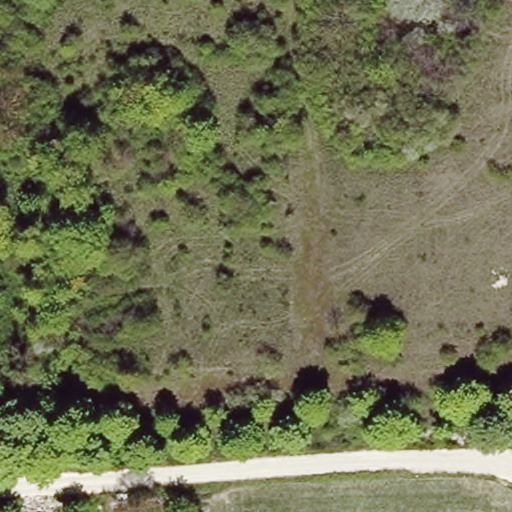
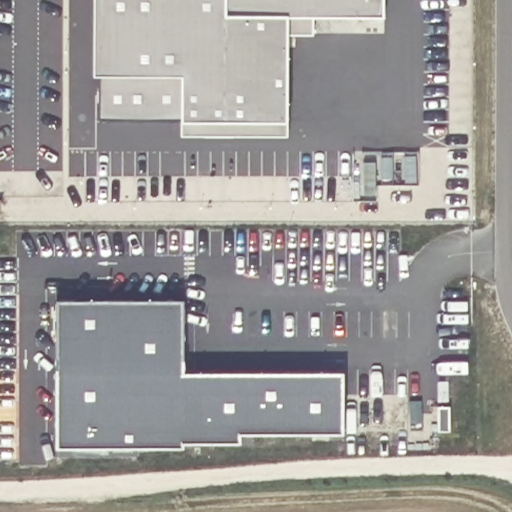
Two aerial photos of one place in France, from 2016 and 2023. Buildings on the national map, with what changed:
new [(314,15),(315,35),(290,35),(289,119),(288,119),(289,135),(181,135),(181,117),(100,118),(99,74),(94,74),(95,0),(386,0),(386,14),(314,15)]
new [(346,430),(242,430),(241,440),(185,440),(185,445),(56,444),(57,297),(184,297),(186,368),(344,368),(346,430)]

